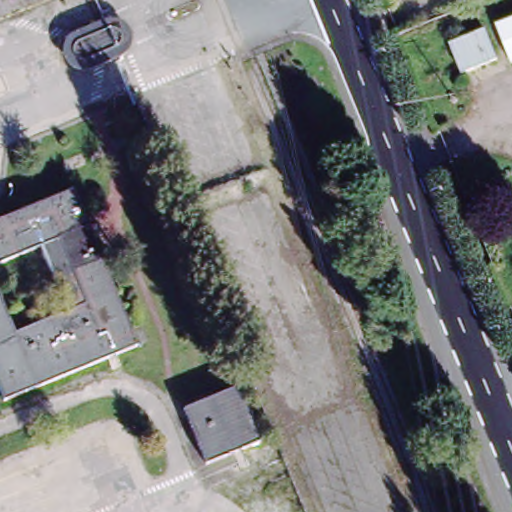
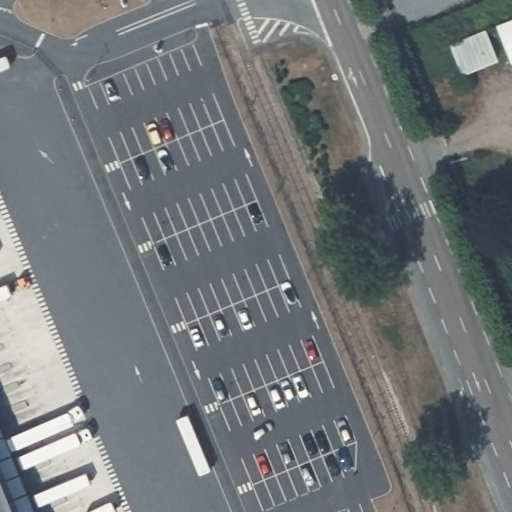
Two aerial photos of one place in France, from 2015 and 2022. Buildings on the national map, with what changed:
unchanged [(512,16),(512,51),(500,20),(512,16)]
demolished [(100,21),(104,29),(105,27),(107,27),(109,27),(111,27),(113,27),(115,28),(117,29),(118,31),(119,32),(120,34),(121,36),(121,38),(121,40),(120,42),(119,44),(118,45),(117,47),(114,48),(86,59),(84,60),(82,60),(81,59),(79,58),(77,57),(76,56),(74,54),(74,52),(73,50),(73,48),(73,46),(74,45),(76,42),(73,32),(100,21)]
unchanged [(449,42),(484,28),(496,57),(461,71),(449,42)]
demolished [(62,193),(75,187),(138,345),(31,388),(42,321),(69,310),(85,302),(59,237),(55,239),(62,193)]
demolished [(42,244),(0,261),(0,219),(62,193),(55,239),(42,244)]
demolished [(55,239),(59,237),(85,302),(69,310),(51,265),(42,244),(55,239)]
demolished [(16,332),(42,321),(31,388),(4,400),(0,390),(0,292),(16,332)]
demolished [(236,384),(259,439),(203,462),(180,407),(236,384)]
new [(19,512),(0,512),(0,465),(19,512)]

